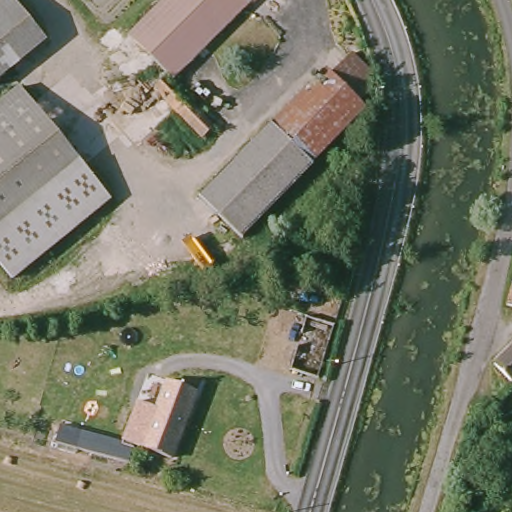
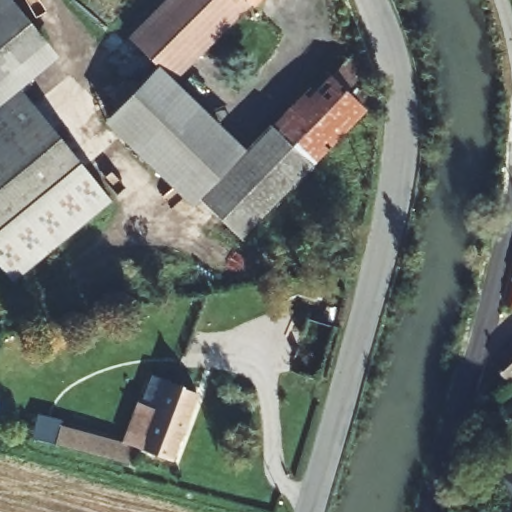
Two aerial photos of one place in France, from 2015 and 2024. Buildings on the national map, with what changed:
unchanged [(45,44),(0,78),(0,0),(13,0),(45,44)]
unchanged [(178,0),(219,0),(156,61),(137,42),(178,0)]
unchanged [(177,82),(156,61),(219,0),(266,0),(179,84),(177,82)]
unchanged [(344,56),(386,97),(301,179),(262,137),(344,56)]
new [(179,84),(246,149),(215,178),(195,197),(199,201),(195,205),(104,122),(160,64),(179,84)]
unchanged [(19,87),(106,202),(84,219),(46,185),(0,144),(0,102),(19,87)]
demolished [(214,133),(199,145),(158,99),(172,87),(214,133)]
unchanged [(260,135),(262,137),(301,179),(255,222),(215,178),(260,135)]
unchanged [(8,277),(0,268),(0,144),(46,185),(84,219),(8,277)]
unchanged [(255,222),(236,240),(195,197),(215,178),(255,222)]
unchanged [(512,286),(512,310),(506,309),(512,286)]
unchanged [(333,328),(314,380),(288,370),(307,319),(333,328)]
unchanged [(511,374),(502,364),(512,354),(512,377),(511,374)]
new [(137,402),(156,410),(165,381),(199,393),(174,460),(131,445),(121,442),(137,402)]
demolished [(184,393),(195,397),(176,443),(170,441),(164,457),(141,451),(167,388),(184,393)]
unchanged [(56,441),(60,425),(131,445),(129,453),(126,462),(56,441)]

